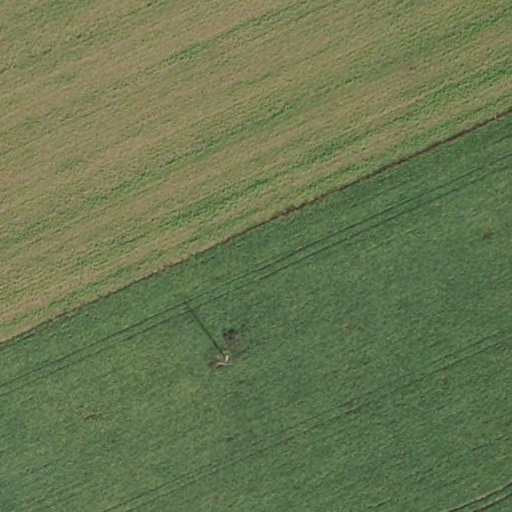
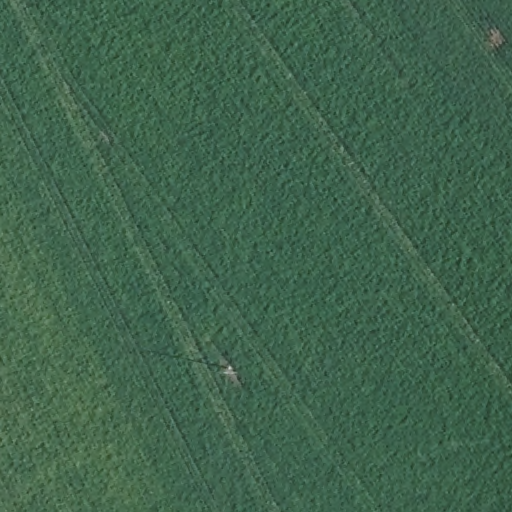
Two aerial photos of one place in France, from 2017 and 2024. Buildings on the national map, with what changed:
[]

